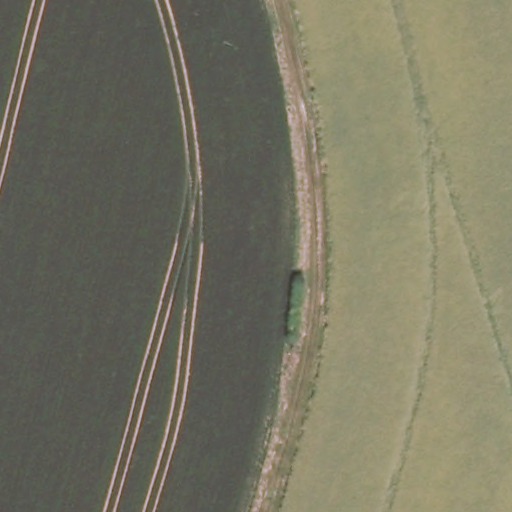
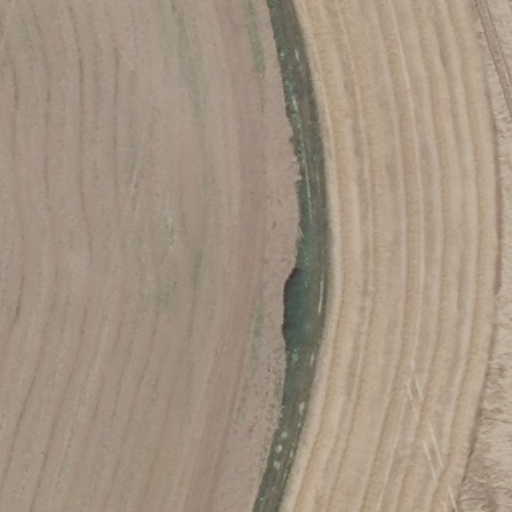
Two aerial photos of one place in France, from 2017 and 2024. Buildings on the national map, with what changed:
[]

